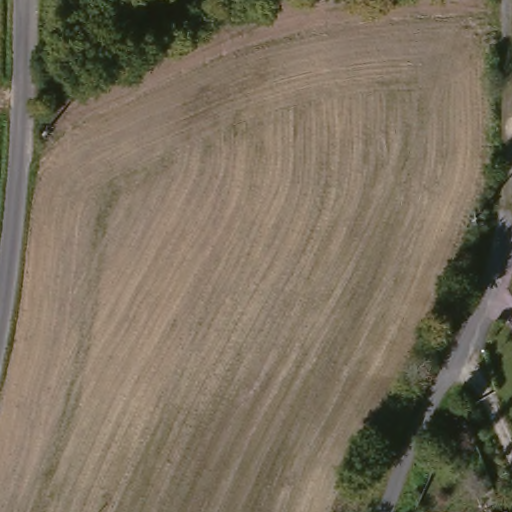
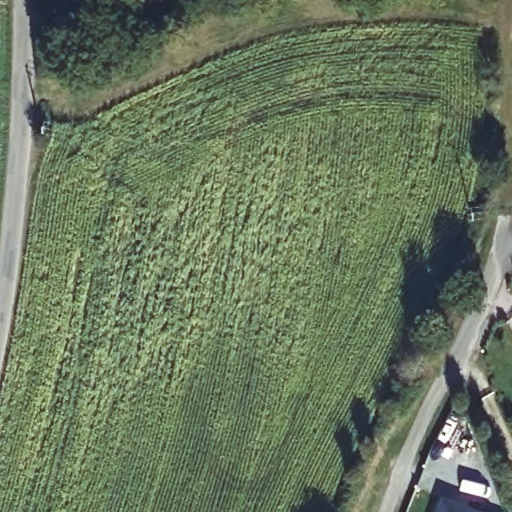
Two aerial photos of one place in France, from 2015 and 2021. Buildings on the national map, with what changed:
new [(476,512),(437,512),(441,499),(476,512)]

